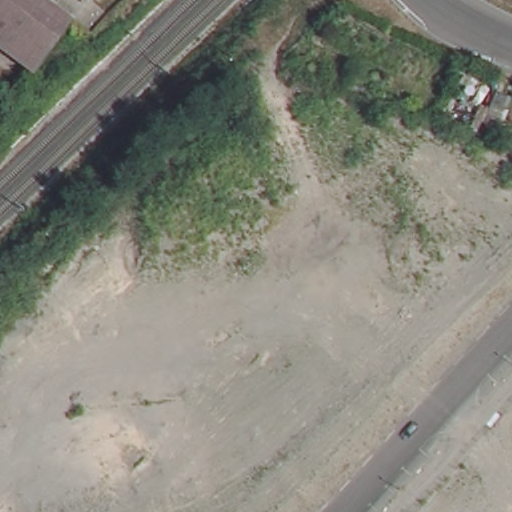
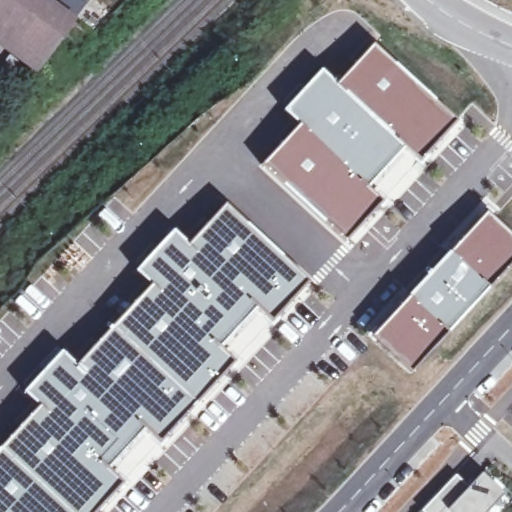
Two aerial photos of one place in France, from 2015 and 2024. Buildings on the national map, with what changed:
unchanged [(31,69),(0,46),(0,0),(46,0),(73,19),(31,69)]
unchanged [(46,0),(90,0),(73,19),(46,0)]
new [(373,42),(456,118),(415,163),(408,156),(386,130),(335,81),(373,42)]
new [(320,67),(335,81),(386,130),(408,156),(371,187),(352,172),(315,137),(297,123),(281,109),(320,67)]
new [(297,123),(315,137),(352,172),(371,187),(383,199),(343,240),(258,164),(297,123)]
new [(115,465),(111,468),(122,479),(93,512),(0,512),(0,444),(36,405),(21,390),(60,347),(75,361),(148,284),(133,269),(173,227),(187,241),(225,201),(308,278),(269,322),(257,311),(223,347),(234,359),(181,415),(159,442),(131,471),(120,460),(115,465)]
new [(512,234),(512,257),(487,284),(488,286),(449,249),(487,210),(512,234)]
new [(449,249),(488,286),(446,331),(408,293),(449,249)]
new [(408,293),(446,331),(408,370),(370,335),(408,293)]
new [(501,490),(490,502),(494,505),(487,512),(424,512),(422,510),(456,474),(469,486),(482,472),(501,490)]

